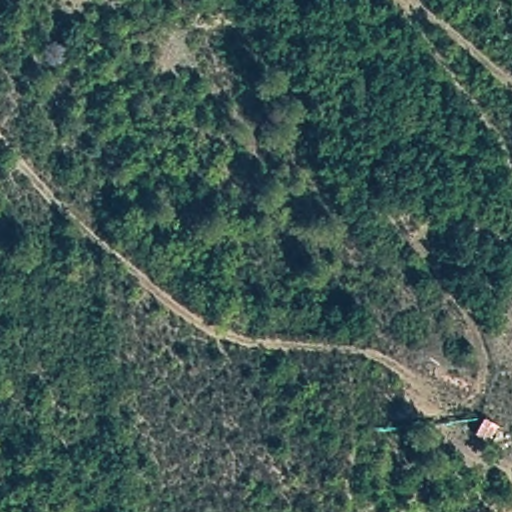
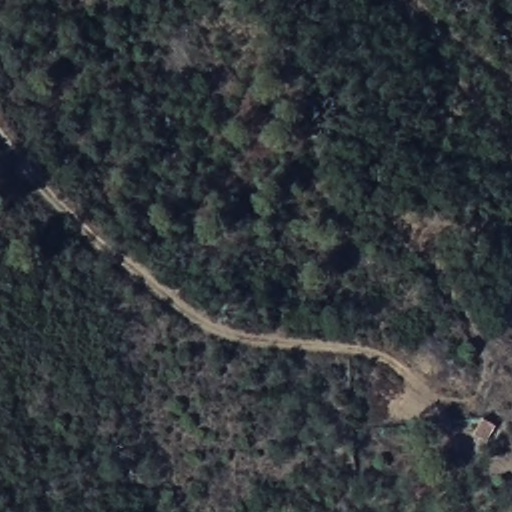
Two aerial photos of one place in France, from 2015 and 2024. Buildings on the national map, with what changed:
unchanged [(482,412),(499,419),(489,441),(472,432),(482,412)]

